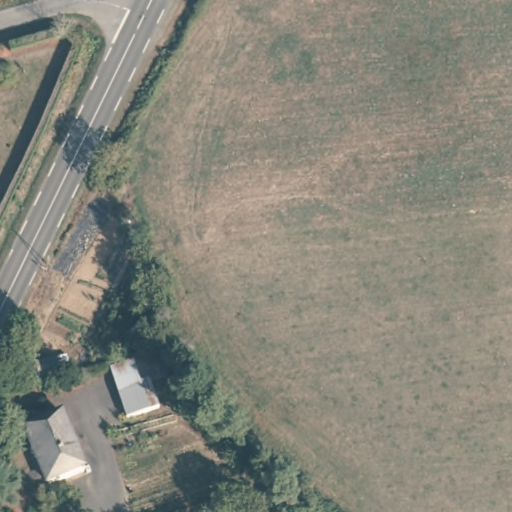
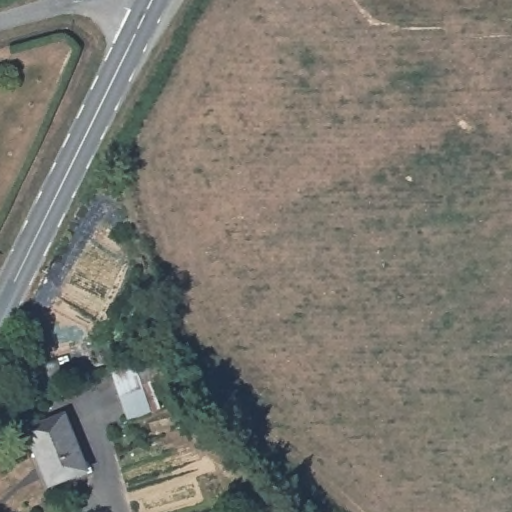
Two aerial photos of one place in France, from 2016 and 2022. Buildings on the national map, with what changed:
unchanged [(35,386),(30,367),(56,358),(64,378),(35,386)]
unchanged [(161,407),(129,418),(112,370),(144,360),(161,407)]
unchanged [(86,470),(48,484),(27,429),(64,415),(86,470)]

